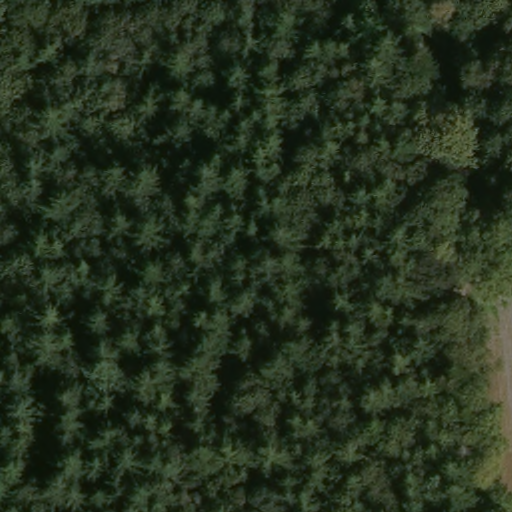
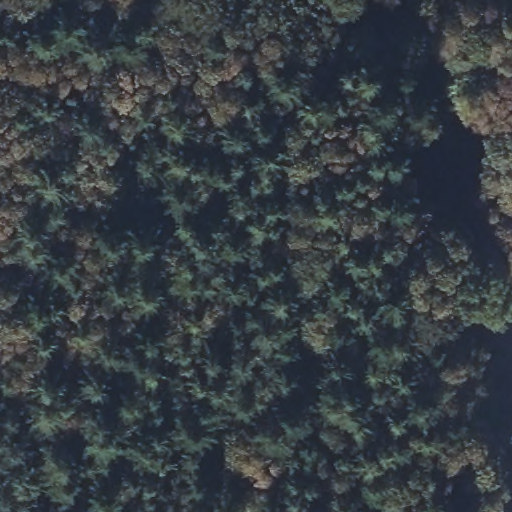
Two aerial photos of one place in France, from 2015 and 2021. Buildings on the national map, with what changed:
[]

